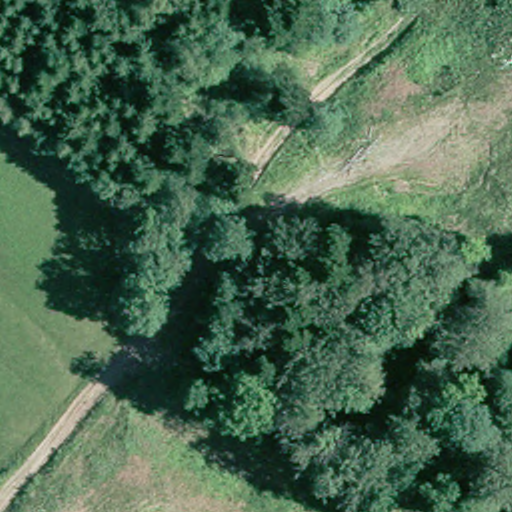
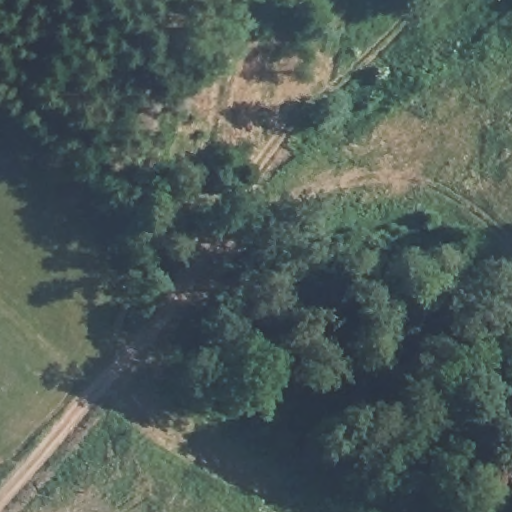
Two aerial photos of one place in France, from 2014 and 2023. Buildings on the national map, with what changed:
[]

